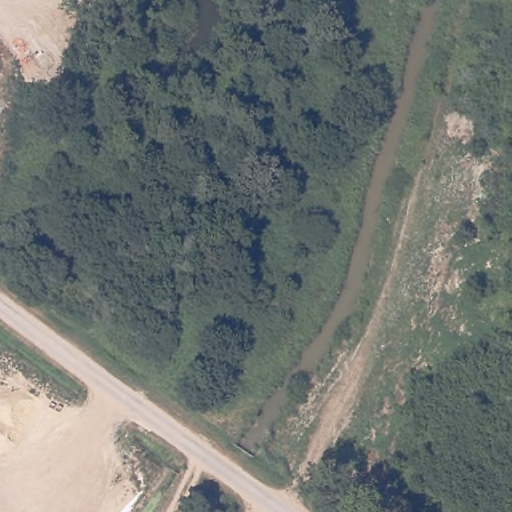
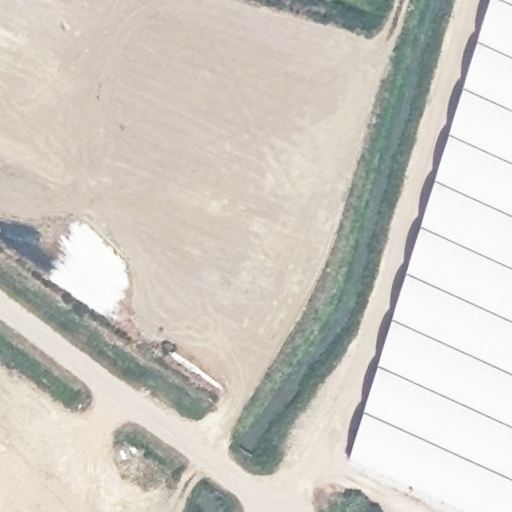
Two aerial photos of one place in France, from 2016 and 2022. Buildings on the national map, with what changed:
new [(467,512),(348,458),(489,0),(512,0),(512,512),(467,512)]

